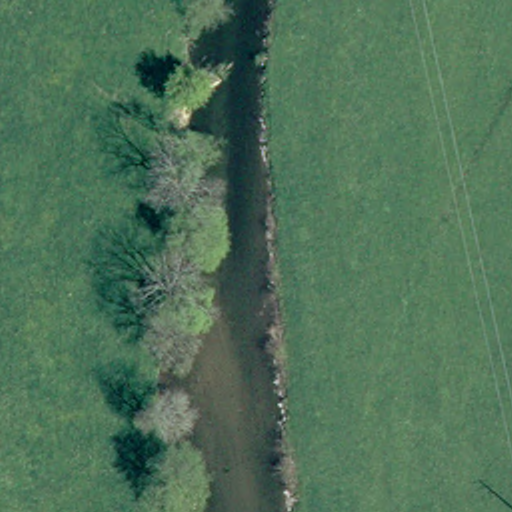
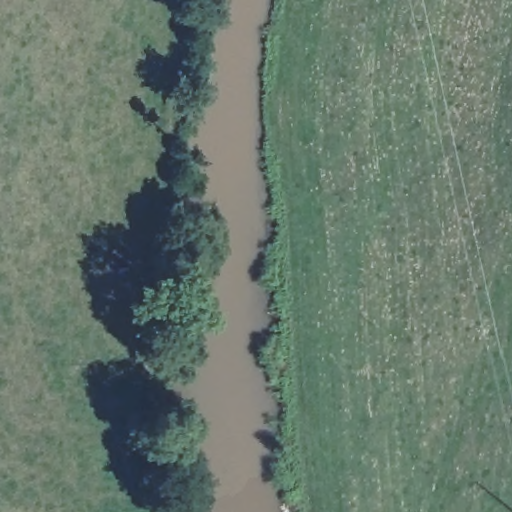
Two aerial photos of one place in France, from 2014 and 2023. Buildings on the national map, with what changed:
[]

